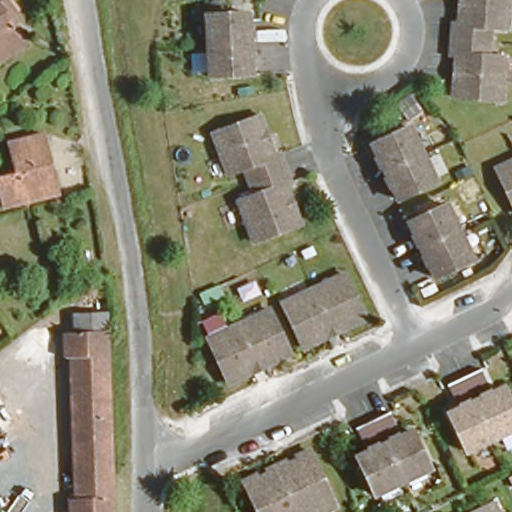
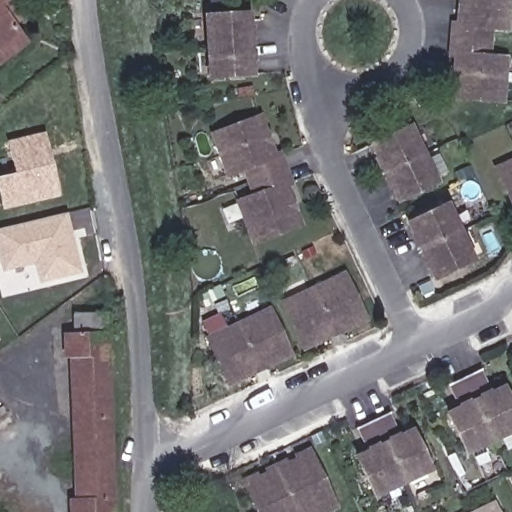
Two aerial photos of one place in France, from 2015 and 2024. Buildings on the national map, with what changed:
unchanged [(0,0),(4,0),(8,6),(20,23),(11,29),(23,45),(0,61),(0,14),(0,0)]
unchanged [(445,16),(450,16),(452,0),(502,0),(500,24),(490,22),(486,54),(499,55),(493,99),(445,95),(449,51),(441,50),(443,36),(445,16)]
unchanged [(201,74),(200,42),(200,14),(240,10),(240,25),(241,70),(201,74)]
unchanged [(275,186),(291,225),(244,242),(229,204),(246,198),(235,167),(219,174),(204,134),(250,117),(265,157),(271,155),(276,169),(281,184),(275,186)]
unchanged [(369,149),(406,129),(430,182),(394,201),(382,176),(369,149)]
unchanged [(0,203),(0,173),(9,172),(3,136),(25,133),(39,131),(43,154),(50,194),(0,203)]
unchanged [(508,212),(488,173),(512,161),(512,211),(508,212)]
unchanged [(405,222),(443,205),(467,256),(430,275),(417,249),(405,222)]
new [(0,228),(67,214),(80,271),(37,281),(34,265),(2,272),(0,262),(0,228)]
unchanged [(275,303),(336,274),(355,313),(325,326),(293,341),(275,303)]
unchanged [(202,336),(262,308),(281,348),(251,362),(221,377),(202,336)]
unchanged [(107,512),(64,512),(64,493),(70,493),(66,355),(60,355),(59,335),(72,335),(73,317),(102,315),(107,512)]
unchanged [(489,395),(500,390),(512,415),(512,429),(463,452),(445,415),(456,410),(445,387),(465,378),(478,372),(489,395)]
unchanged [(382,413),(395,436),(404,431),(420,470),(366,492),(350,458),(361,452),(350,428),(367,420),(382,413)]
unchanged [(326,508),(318,512),(249,512),(236,484),(271,467),(301,452),(326,508)]
unchanged [(496,512),(476,512),(492,505),(496,512)]

